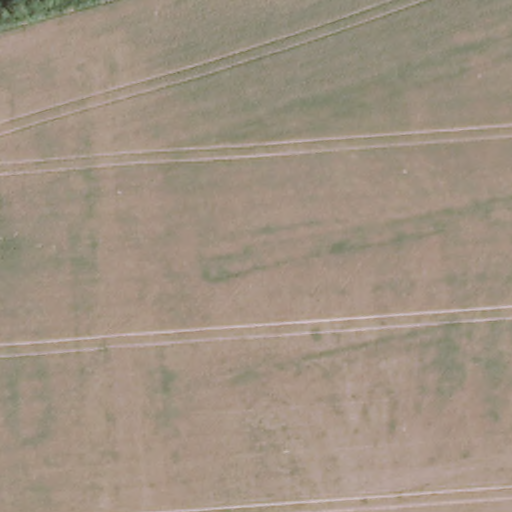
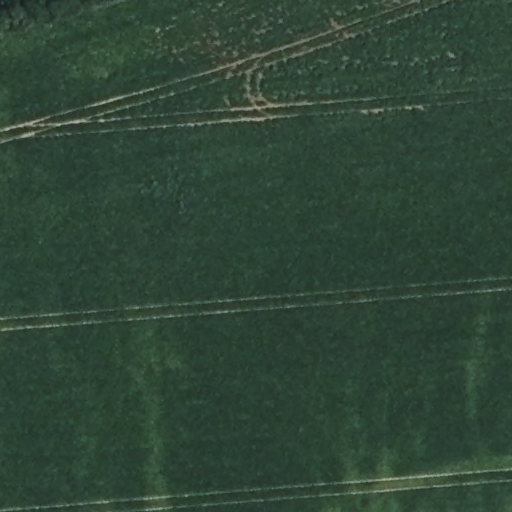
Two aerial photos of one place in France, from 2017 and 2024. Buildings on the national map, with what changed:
[]

